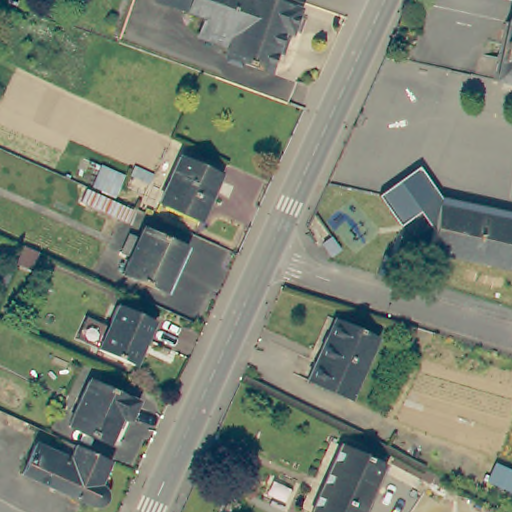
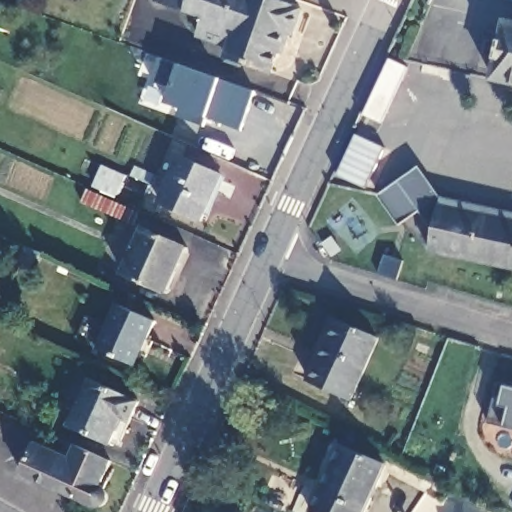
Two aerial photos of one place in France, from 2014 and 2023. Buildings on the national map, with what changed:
unchanged [(278,0),(299,7),(291,31),(285,29),(272,68),(226,54),(235,24),(204,14),(163,0),(278,0)]
unchanged [(235,24),(226,54),(194,44),(204,14),(235,24)]
unchanged [(512,24),(512,84),(489,79),(503,22),(512,24)]
new [(178,107),(187,111),(163,102),(169,86),(149,79),(158,57),(252,91),(238,128),(204,116),(201,125),(184,118),(175,115),(178,107)]
unchanged [(218,174),(196,220),(157,201),(178,156),(218,174)]
unchanged [(434,231),(420,209),(400,222),(381,192),(421,166),(440,197),(443,197),(441,205),(434,231)]
unchanged [(129,227),(118,222),(82,206),(88,193),(124,209),(135,214),(129,227)]
unchanged [(512,267),(437,252),(429,251),(434,231),(441,205),(443,197),(512,212),(512,267)]
unchanged [(123,254),(131,237),(141,241),(145,232),(187,251),(166,296),(124,277),(133,258),(123,254)]
unchanged [(155,323),(146,342),(143,341),(131,367),(98,352),(119,307),(155,323)]
unchanged [(349,401),(306,384),(331,321),(373,338),(349,401)]
unchanged [(133,400),(114,444),(106,441),(105,442),(65,423),(86,378),(133,400)]
unchanged [(507,387),(512,389),(512,428),(506,426),(490,423),(500,386),(507,387)]
unchanged [(99,493),(104,495),(106,497),(108,499),(108,502),(108,505),(107,507),(106,509),(103,511),(101,512),(98,511),(23,477),(37,446),(62,457),(69,444),(74,447),(81,450),(112,464),(99,493)]
unchanged [(357,512),(309,512),(306,511),(335,445),(379,466),(357,512)]
demolished [(512,475),(512,478),(505,492),(481,480),(490,462),(512,475)]

